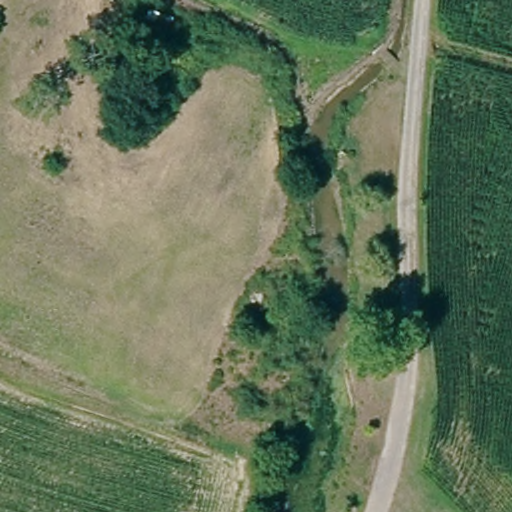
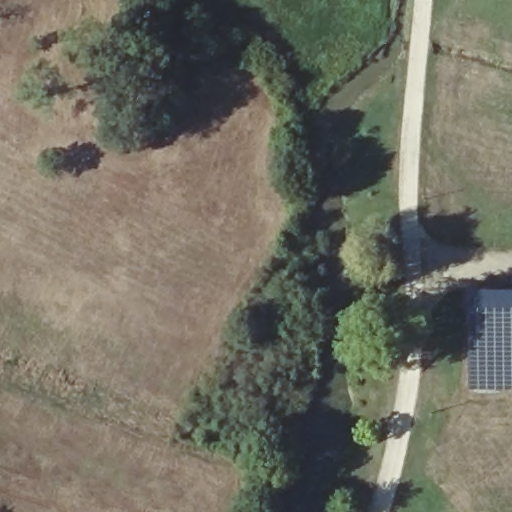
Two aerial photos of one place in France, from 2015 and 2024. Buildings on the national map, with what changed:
new [(470,292),(512,292),(512,394),(471,394),(470,292)]

